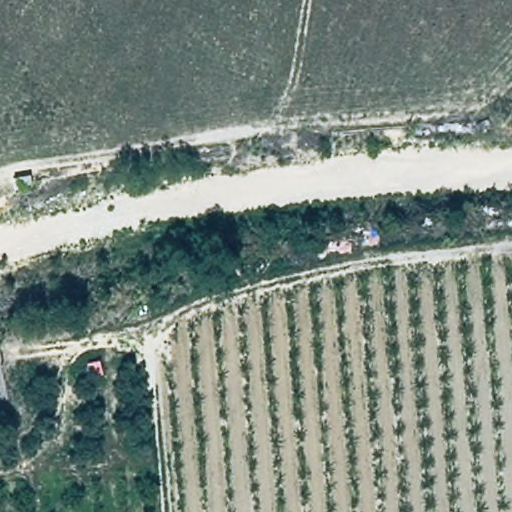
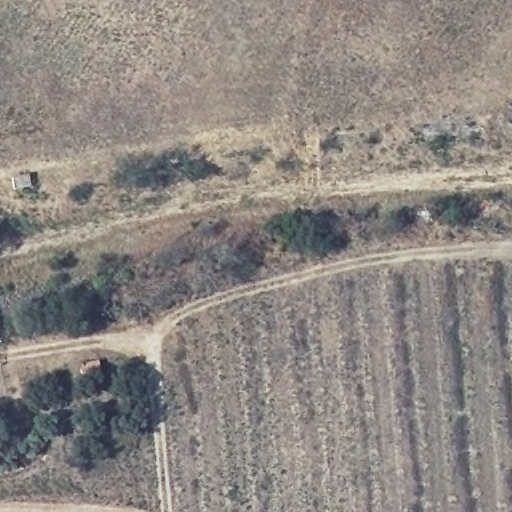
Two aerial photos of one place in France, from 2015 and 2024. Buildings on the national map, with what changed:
unchanged [(8,177),(29,176),(29,189),(11,191),(8,177)]

